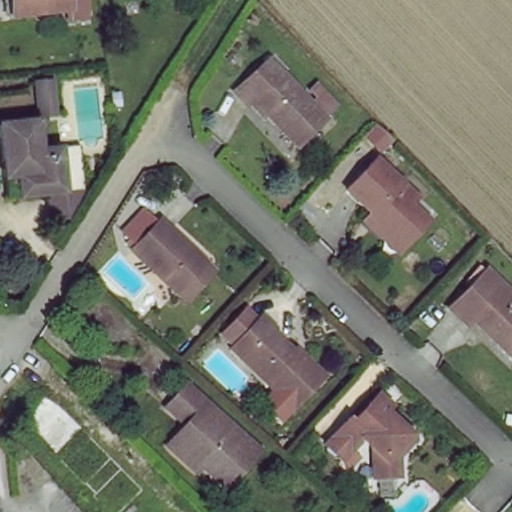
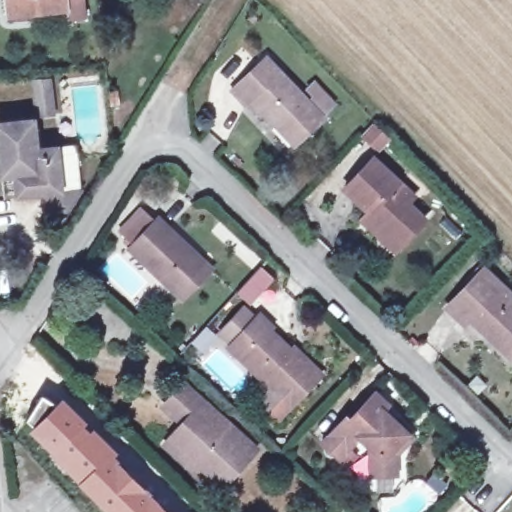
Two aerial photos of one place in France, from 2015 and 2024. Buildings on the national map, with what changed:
unchanged [(64,0),(64,10),(7,15),(6,0),(64,0)]
unchanged [(314,93),(328,108),(294,145),(255,105),(246,112),(231,99),(255,74),(264,64),(278,78),(305,103),(314,93)]
new [(50,82),(53,114),(36,116),(33,83),(50,82)]
unchanged [(21,199),(5,200),(3,176),(0,149),(0,127),(39,122),(42,150),(58,148),(64,194),(83,192),(68,219),(51,221),(49,196),(21,199)]
unchanged [(404,201),(398,207),(415,223),(395,245),(382,234),(376,241),(362,228),(368,221),(340,196),(365,166),(404,201)]
unchanged [(181,301),(172,292),(127,250),(155,219),(200,262),(209,271),(181,301)]
unchanged [(512,357),(505,363),(464,326),(460,331),(442,315),(479,275),(512,305),(512,357)]
unchanged [(243,300),(259,316),(234,343),(226,350),(210,334),(243,300)]
unchanged [(309,388),(289,409),(240,360),(246,355),(234,343),(259,316),(312,367),(321,375),(309,388)]
unchanged [(164,441),(177,427),(184,419),(164,400),(180,382),(255,449),(224,483),(200,462),(194,469),(164,441)]
unchanged [(406,431),(388,451),(389,478),(367,478),(364,447),(352,436),(343,445),(332,432),(345,416),(365,393),(406,431)]
new [(41,394),(54,403),(62,396),(118,453),(116,456),(135,476),(171,512),(104,512),(28,431),(33,426),(25,419),(41,394)]

